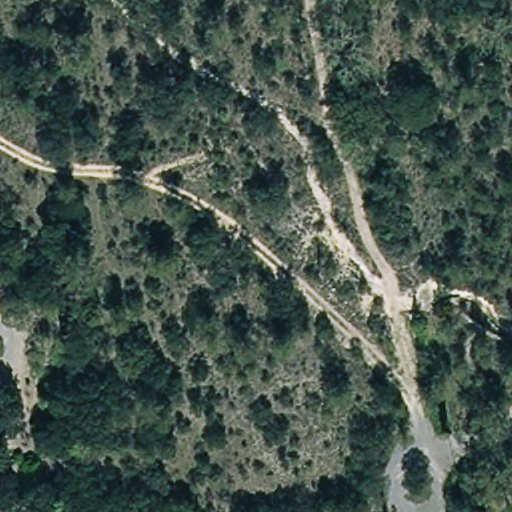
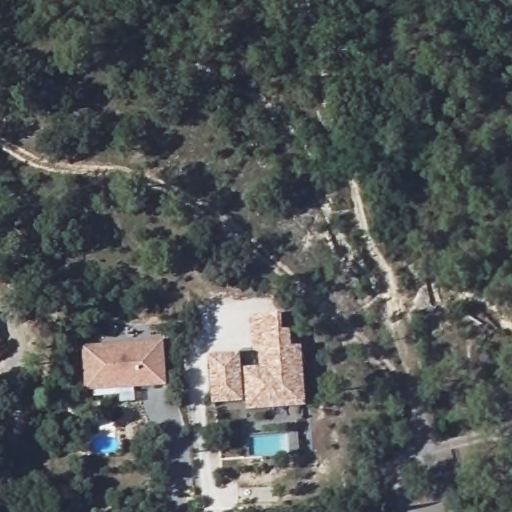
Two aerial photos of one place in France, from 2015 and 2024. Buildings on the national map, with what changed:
new [(247,411),(244,369),(260,368),(259,351),(252,351),(251,317),(281,314),(283,330),(290,330),(292,348),(302,347),(305,407),(247,411)]
new [(85,391),(83,347),(163,342),(165,386),(85,391)]
new [(211,404),(209,356),(240,354),(243,401),(211,404)]

